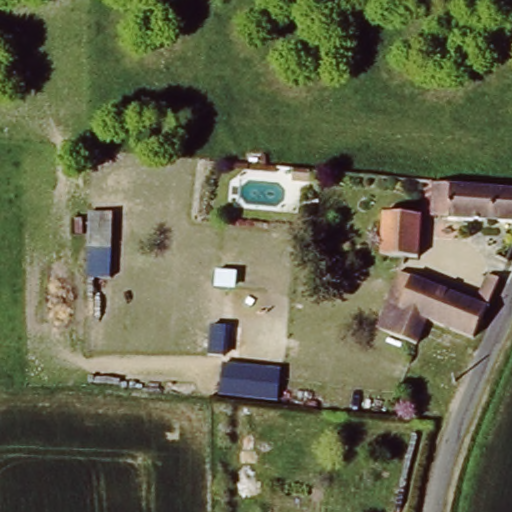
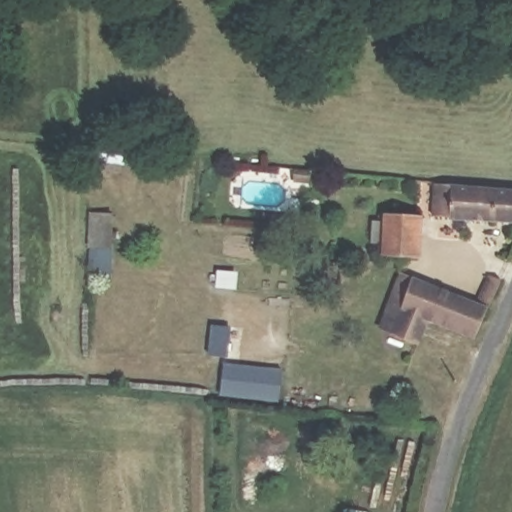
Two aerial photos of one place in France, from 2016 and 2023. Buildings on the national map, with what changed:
unchanged [(508,219),(434,214),(436,179),(512,186),(512,211),(508,219)]
unchanged [(415,252),(392,250),(380,250),(380,209),(417,211),(415,252)]
unchanged [(112,212),(111,278),(87,277),(88,211),(112,212)]
unchanged [(477,337),(427,320),(420,342),(382,328),(402,273),(478,301),(488,275),(503,280),(477,337)]
unchanged [(281,369),(278,402),(218,397),(222,363),(281,369)]

